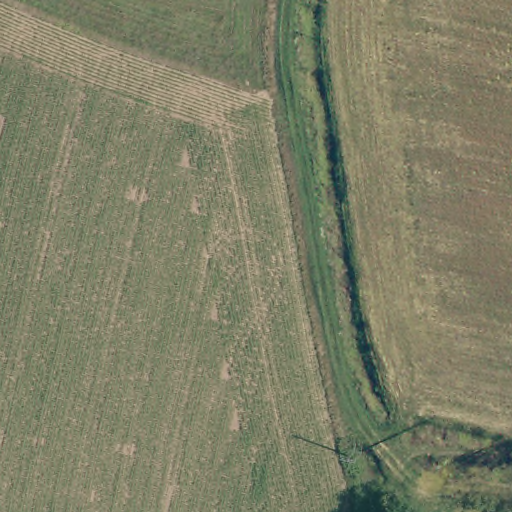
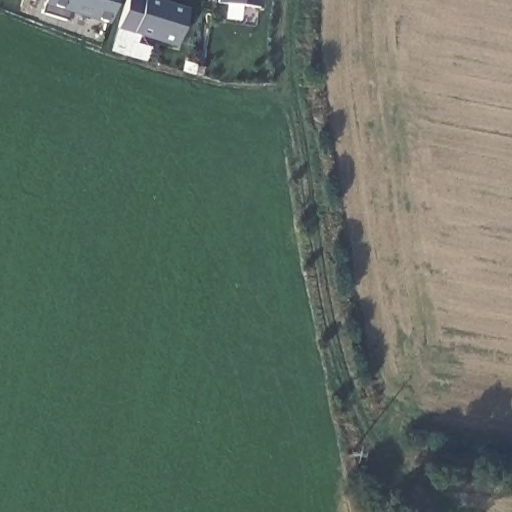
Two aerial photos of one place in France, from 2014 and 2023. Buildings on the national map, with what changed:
new [(46,0),(116,0),(109,25),(70,13),(67,23),(41,16),(46,0)]
new [(157,2),(187,11),(176,46),(119,29),(127,0),(158,0),(157,2)]
new [(221,0),(262,0),(261,12),(220,7),(221,0)]

